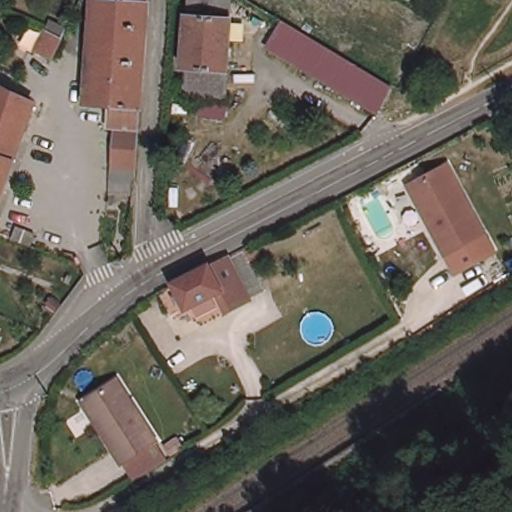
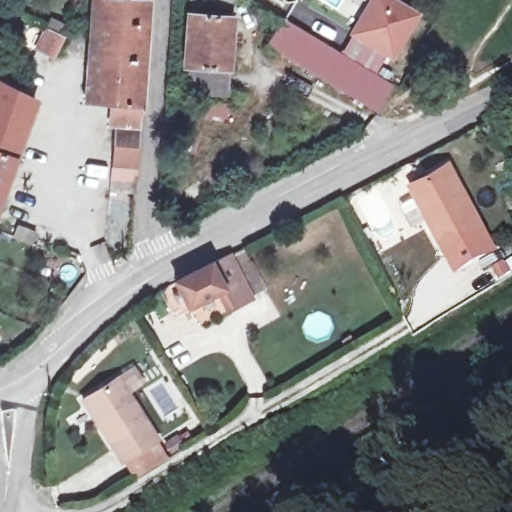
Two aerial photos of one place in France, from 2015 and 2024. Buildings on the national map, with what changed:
unchanged [(107,198),(112,130),(108,129),(109,109),(86,108),(92,11),(117,14),(118,0),(144,0),(131,200),(107,198)]
unchanged [(234,0),(229,69),(185,66),(189,0),(234,0)]
new [(393,59),(349,33),(369,0),(398,0),(421,14),(393,59)]
unchanged [(56,62),(37,53),(46,35),(47,35),(52,24),(68,31),(62,43),(64,44),(56,62)]
unchanged [(379,111),(277,49),(292,24),(391,84),(379,111)]
unchanged [(227,94),(183,91),(185,66),(229,69),(227,94)]
unchanged [(39,91),(40,93),(0,205),(0,72),(39,91)]
unchanged [(448,259),(439,242),(401,174),(439,153),(477,220),(486,238),(448,259)]
unchanged [(20,226),(36,232),(33,243),(16,237),(20,226)]
unchanged [(202,269),(221,259),(234,252),(257,294),(242,302),(239,303),(224,310),(215,294),(177,314),(164,289),(164,288),(163,287),(201,268),(202,269)]
unchanged [(84,403),(118,381),(158,442),(124,464),(84,403)]

